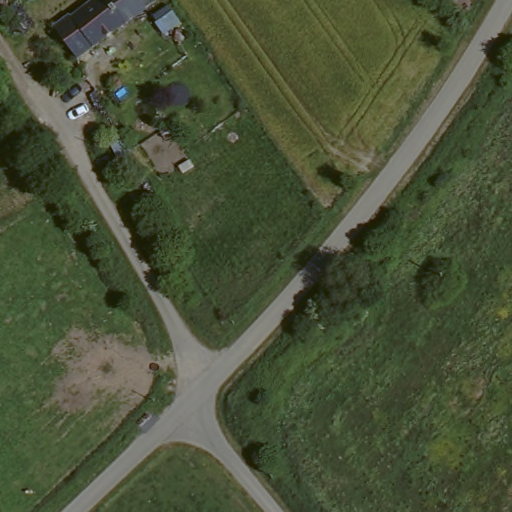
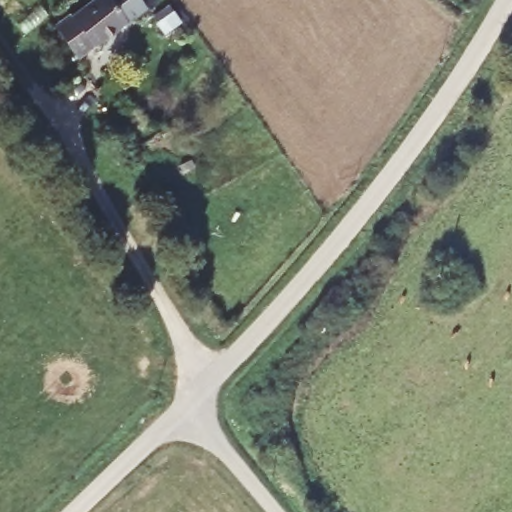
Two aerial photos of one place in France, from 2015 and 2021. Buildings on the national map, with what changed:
unchanged [(93,0),(145,0),(89,51),(65,27),(93,0)]

